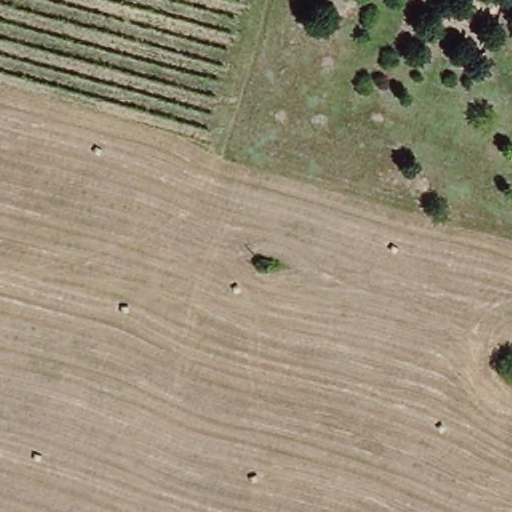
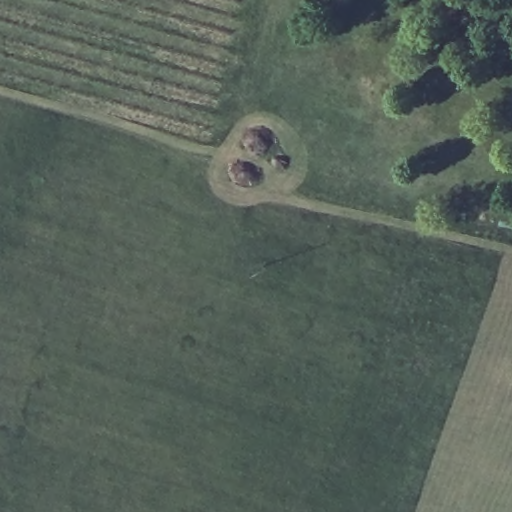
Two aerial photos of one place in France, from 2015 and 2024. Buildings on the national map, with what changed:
[]

